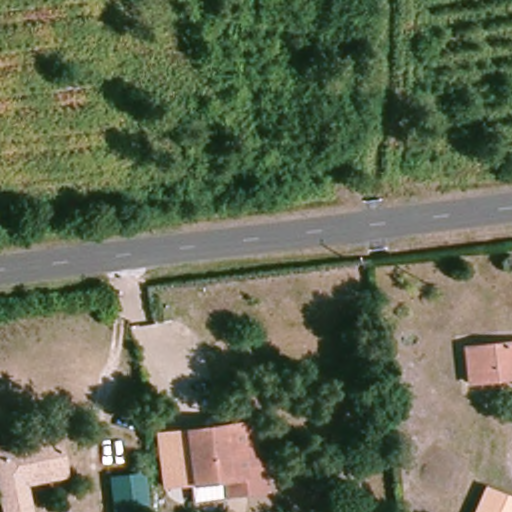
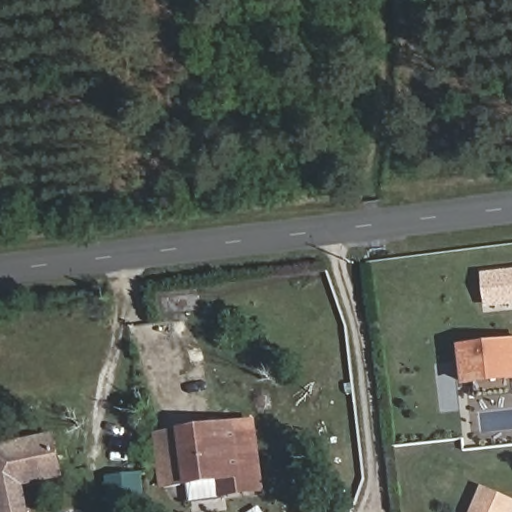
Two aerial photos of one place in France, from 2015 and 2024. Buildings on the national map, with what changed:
new [(487,307),(483,272),(512,269),(512,304),(487,307)]
unchanged [(462,383),(458,348),(512,342),(512,377),(462,383)]
unchanged [(263,490),(227,495),(225,480),(240,477),(233,426),(254,423),(263,490)]
unchanged [(240,477),(225,480),(186,485),(179,433),(233,426),(240,477)]
unchanged [(29,512),(0,512),(0,511),(0,448),(49,437),(56,465),(59,477),(23,485),(29,512)]
unchanged [(110,512),(105,480),(135,476),(140,512),(110,512)]
unchanged [(470,512),(482,485),(512,498),(512,512),(470,512)]

